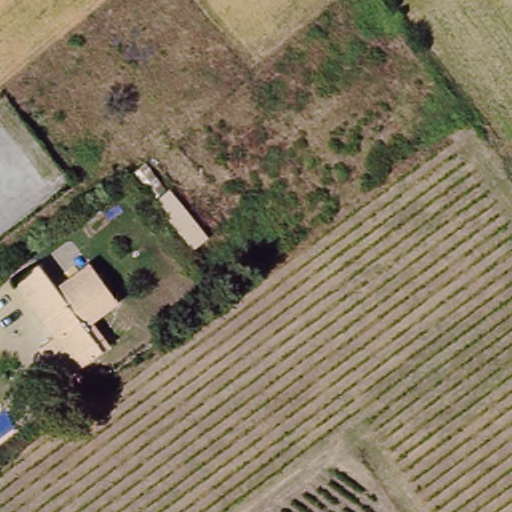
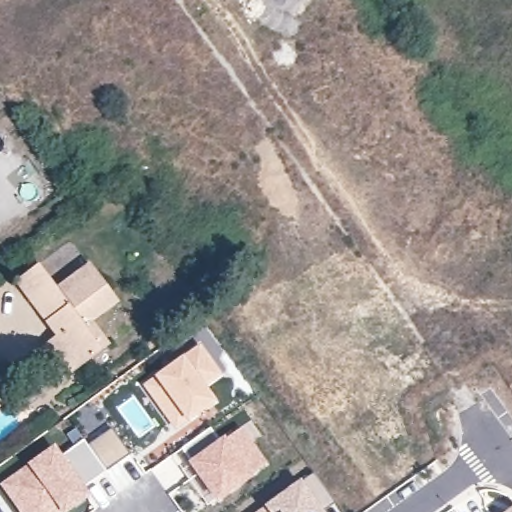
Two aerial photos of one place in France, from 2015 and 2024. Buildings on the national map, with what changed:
unchanged [(36,347),(48,338),(52,335),(43,321),(17,280),(42,264),(60,288),(92,267),(118,307),(92,324),(106,347),(71,371),(56,380),(36,347)]
new [(201,341),(225,373),(209,387),(218,400),(174,431),(141,385),(201,341)]
new [(66,434),(75,427),(83,437),(87,443),(110,427),(130,453),(106,471),(86,487),(61,453),(73,444),(66,434)]
new [(211,428),(221,443),(240,431),(265,465),(218,500),(181,449),(211,428)]
new [(61,453),(86,487),(91,494),(65,512),(18,512),(3,491),(0,488),(0,483),(53,443),(61,453)]
new [(336,503),(323,512),(321,512),(320,510),(317,512),(258,512),(315,473),(336,503)]
new [(504,512),(512,506),(512,512),(504,512)]

